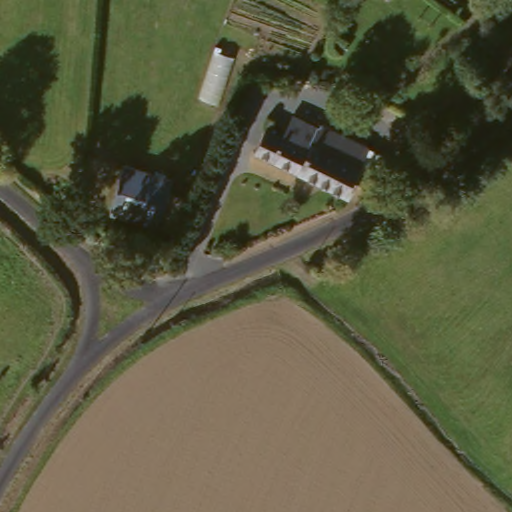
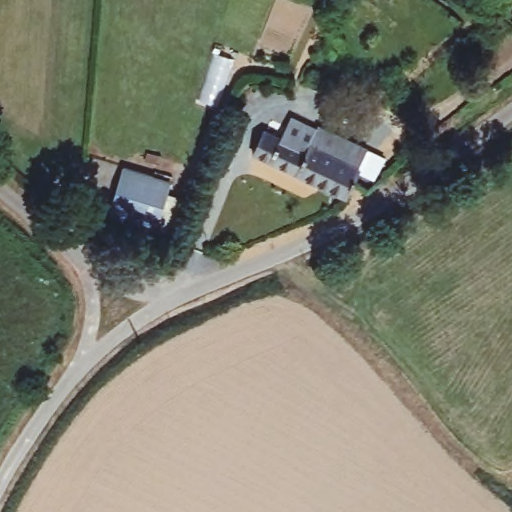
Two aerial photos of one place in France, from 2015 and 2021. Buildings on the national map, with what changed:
unchanged [(351,195),(254,149),(267,122),(289,134),(299,111),(321,121),(373,145),(359,175),(351,195)]
unchanged [(167,222),(162,221),(117,205),(133,159),(183,176),(167,222)]

